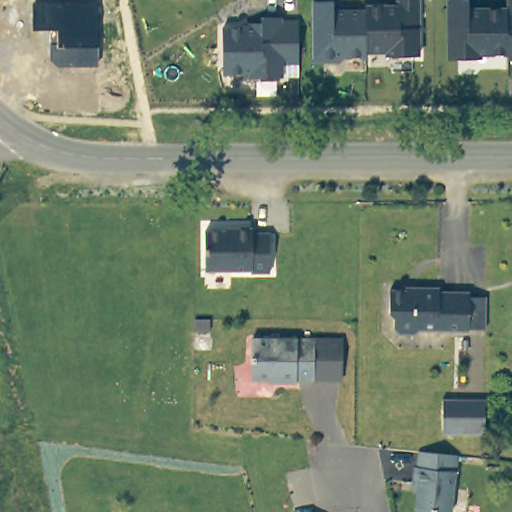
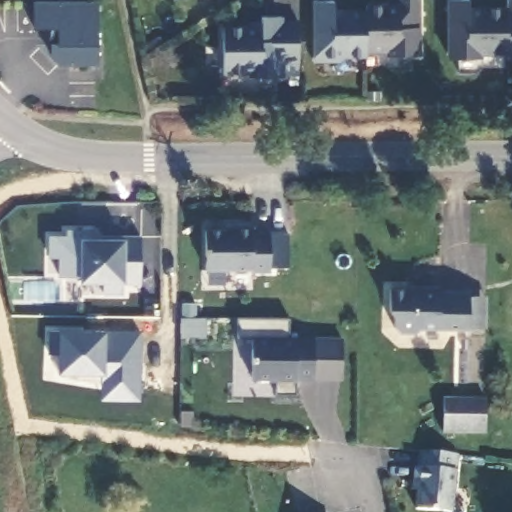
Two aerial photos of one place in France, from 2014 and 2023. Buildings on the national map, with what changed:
unchanged [(312,0),(332,0),(332,4),(338,4),(342,1),(365,0),(417,0),(418,44),(391,45),(386,40),(366,41),(365,41),(365,45),(344,46),(340,50),(313,50),(312,0)]
unchanged [(467,0),(473,0),(512,0),(512,45),(507,45),(506,41),(479,41),(475,46),(448,46),(447,0),(467,0)]
unchanged [(99,3),(98,65),(57,64),(50,59),(49,30),(31,29),(33,1),(99,3)]
unchanged [(297,12),(297,52),(280,52),(281,67),(262,67),(262,63),(223,64),(222,19),(251,18),(254,22),(260,22),(260,8),(279,8),(280,12),(297,12)]
unchanged [(228,224),(247,224),(247,229),(265,229),(265,269),(246,269),(246,266),(213,265),(201,265),(201,225),(213,226),(228,226),(228,224)]
new [(141,284),(124,282),(123,294),(102,293),(103,281),(80,281),(79,274),(53,276),(53,257),(43,257),(45,231),(66,231),(66,227),(92,226),(92,234),(141,234),(141,284)]
unchanged [(473,327),(420,327),(419,334),(396,334),(396,310),(393,304),(393,287),(415,287),(414,286),(422,281),(422,283),(439,284),(439,289),(473,292),(473,297),(490,297),(490,324),(473,325),(473,327)]
new [(100,373),(56,373),(57,353),(46,353),(47,329),(58,329),(103,331),(140,331),(139,398),(100,399),(100,373)]
unchanged [(294,381),(294,384),(273,384),(273,381),(250,380),(250,342),(340,342),(340,381),(294,381)]
unchanged [(437,432),(437,397),(480,398),(480,432),(437,432)]
unchanged [(450,512),(415,509),(416,484),(412,483),(412,466),(415,466),(416,450),(454,454),(450,512)]

